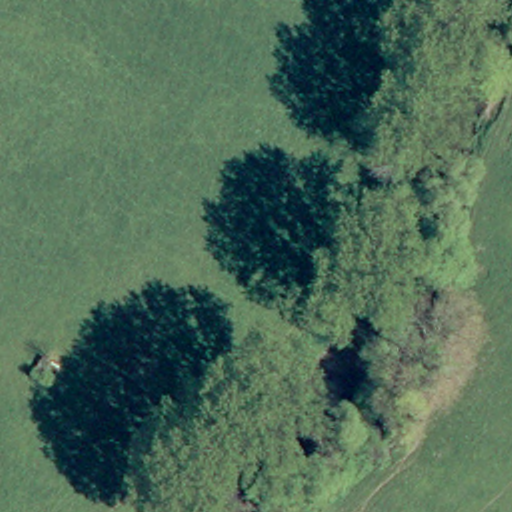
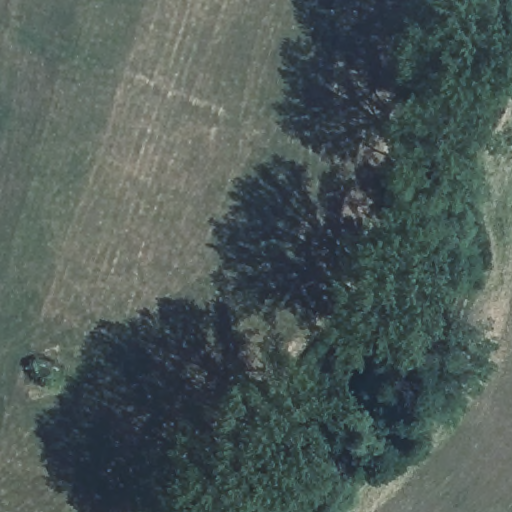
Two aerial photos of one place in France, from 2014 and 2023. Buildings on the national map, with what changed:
unchanged [(70,371),(53,397),(33,390),(43,360),(70,371)]

